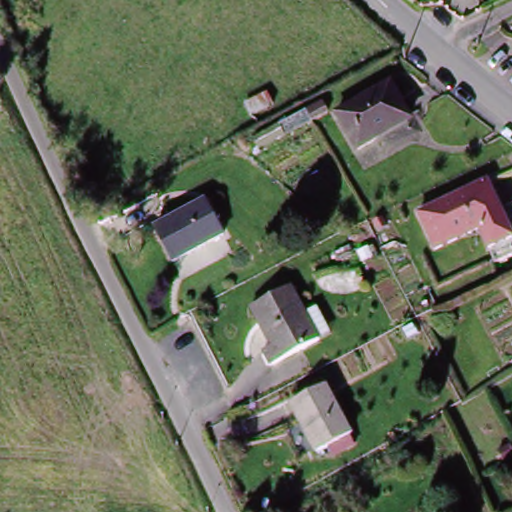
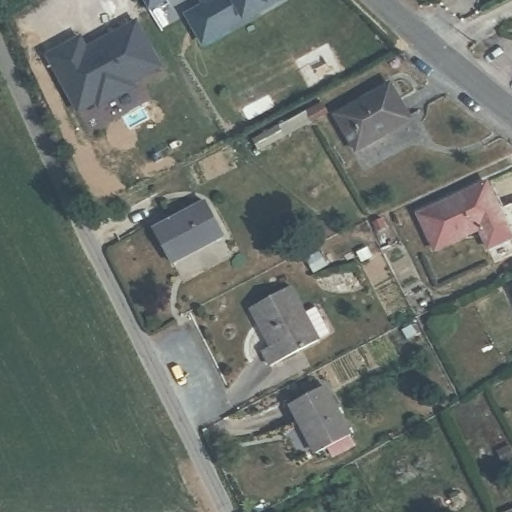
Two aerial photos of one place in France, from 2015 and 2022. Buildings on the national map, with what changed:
new [(141,0),(169,0),(148,11),(141,0)]
new [(202,3),(209,0),(274,0),(276,3),(224,32),(210,28),(197,35),(187,17),(205,8),(202,3)]
new [(80,39),(86,51),(137,24),(160,69),(132,84),(135,89),(98,108),(96,103),(78,113),(48,56),(72,44),(80,39)]
unchanged [(352,148),(332,112),(386,81),(405,114),(370,133),(372,137),(352,148)]
unchanged [(317,108),(322,119),(307,127),(302,116),(317,108)]
unchanged [(482,179),(495,207),(512,198),(512,242),(510,242),(512,246),(512,248),(490,259),(475,227),(431,247),(413,211),(482,179)]
unchanged [(205,199),(223,234),(173,260),(155,225),(205,199)]
unchanged [(267,349),(278,343),(265,320),(263,321),(255,305),(297,283),(311,310),(321,304),(335,331),(325,336),(275,363),(267,349)]
unchanged [(350,432),(317,450),(291,402),(325,384),(350,432)]

